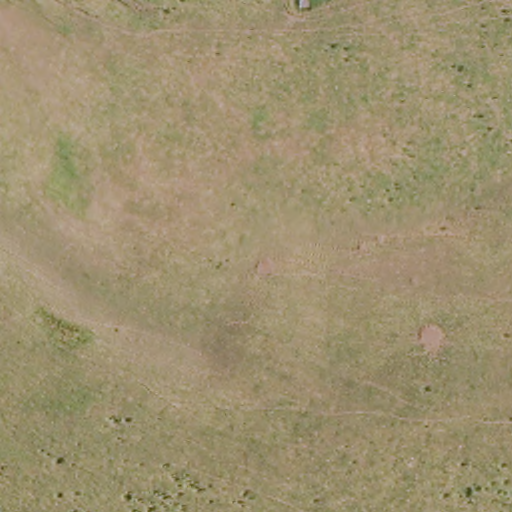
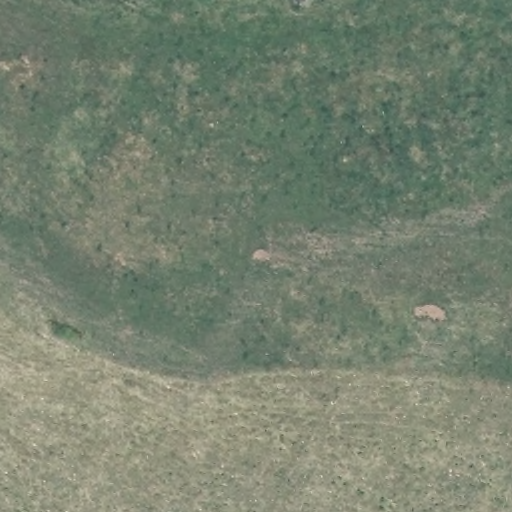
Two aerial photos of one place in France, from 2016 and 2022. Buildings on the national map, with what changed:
[]

